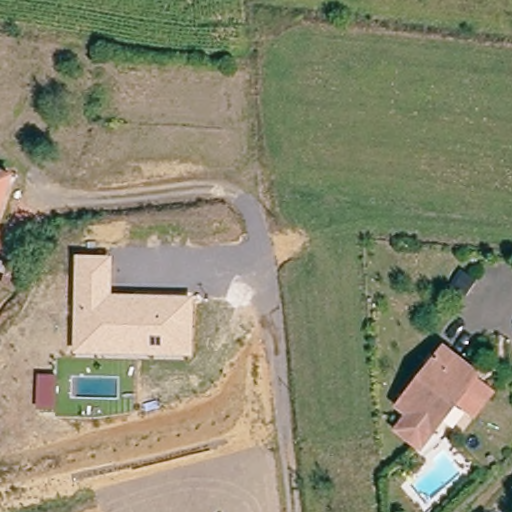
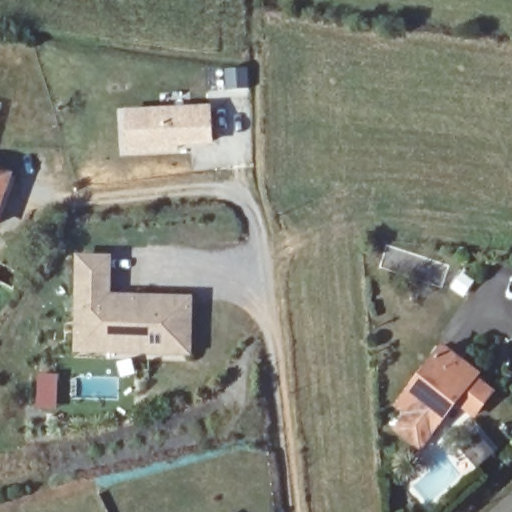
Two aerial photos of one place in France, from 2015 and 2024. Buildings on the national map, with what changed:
new [(215,144),(180,146),(180,153),(126,155),(125,108),(212,103),(215,144)]
unchanged [(0,166),(2,167),(13,171),(0,208),(0,166)]
unchanged [(113,254),(113,293),(195,296),(193,358),(74,354),(76,253),(113,254)]
unchanged [(447,350),(481,378),(477,382),(495,396),(476,417),(460,403),(420,449),(400,432),(413,416),(400,404),(447,350)]
unchanged [(58,375),(57,408),(36,408),(38,375),(58,375)]

